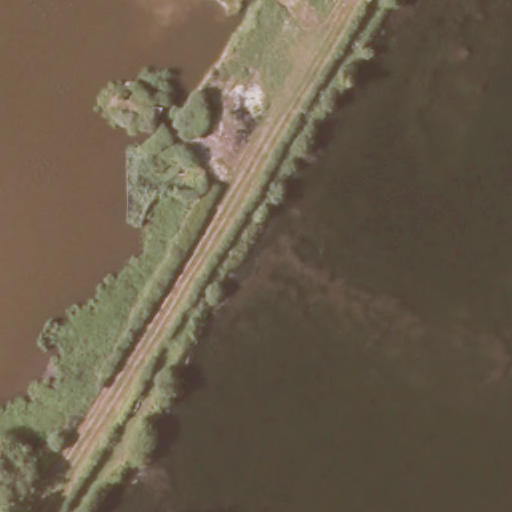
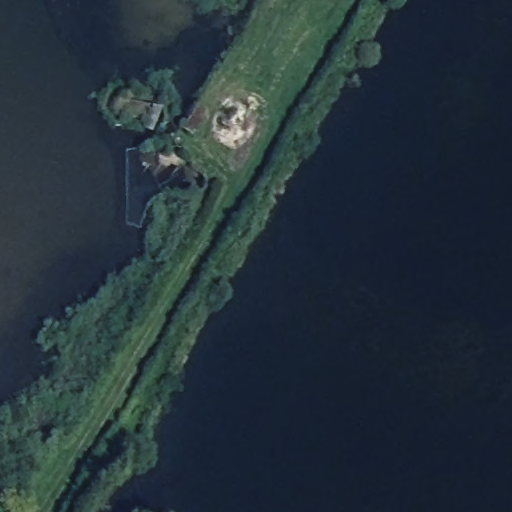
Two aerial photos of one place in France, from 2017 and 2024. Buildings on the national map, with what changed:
unchanged [(113,84),(126,86),(125,100),(112,98),(113,84)]

